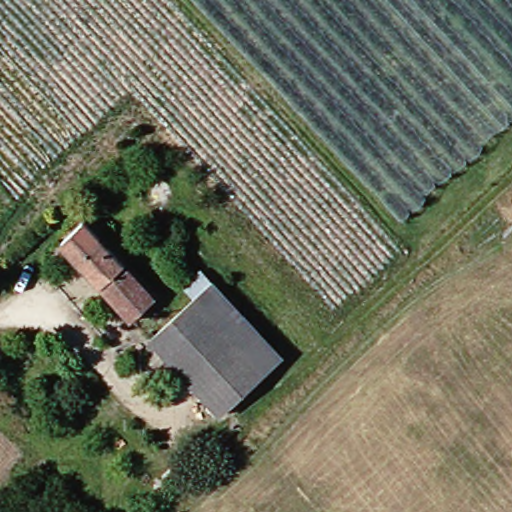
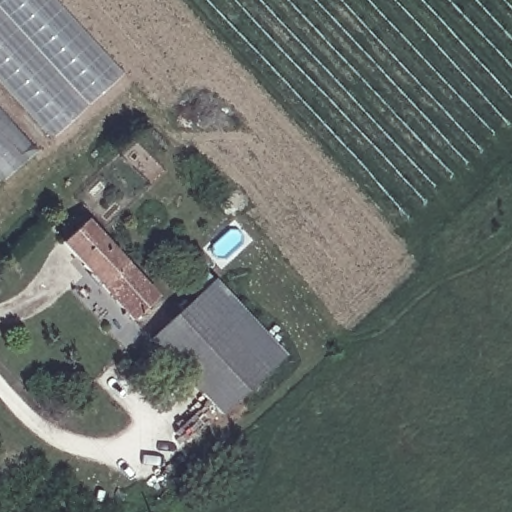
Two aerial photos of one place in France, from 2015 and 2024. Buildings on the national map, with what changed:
new [(51,141),(0,85),(0,0),(56,0),(124,75),(51,141)]
new [(5,181),(0,175),(0,113),(35,153),(5,181)]
unchanged [(145,283),(153,280),(166,291),(135,320),(65,243),(91,220),(145,283)]
unchanged [(271,374),(225,417),(154,341),(215,283),(261,329),(287,359),(271,374)]

